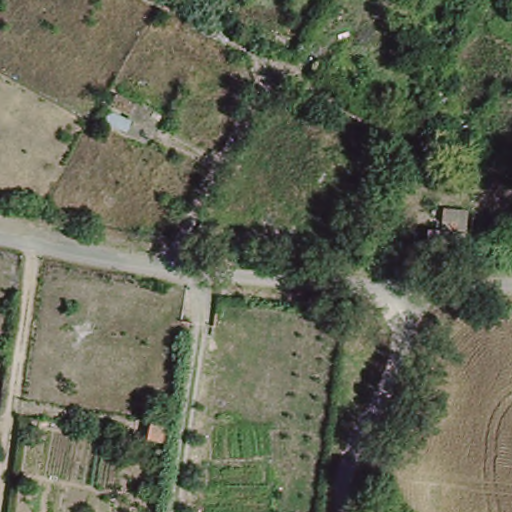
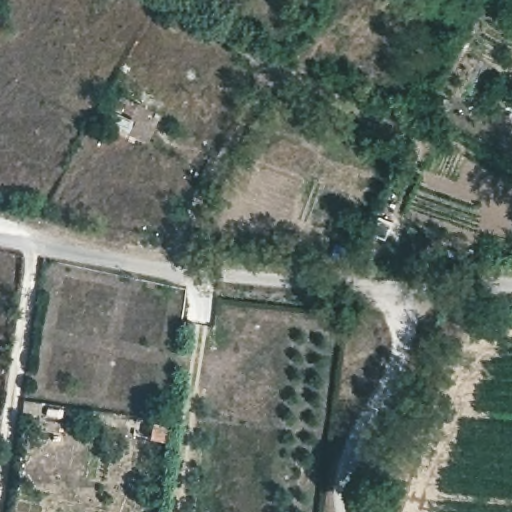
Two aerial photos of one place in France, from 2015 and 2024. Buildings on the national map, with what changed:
unchanged [(100,118),(113,89),(138,98),(136,113),(156,124),(151,140),(100,118)]

